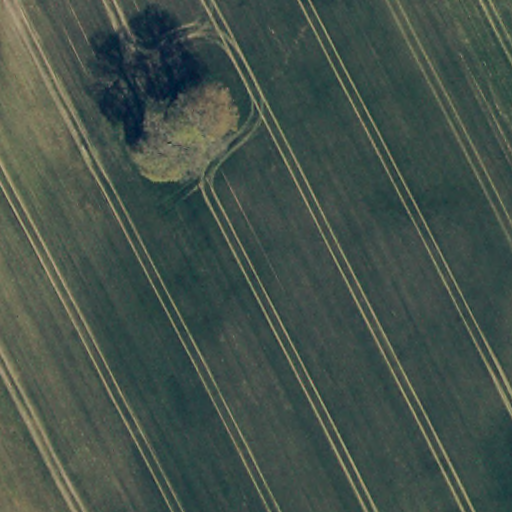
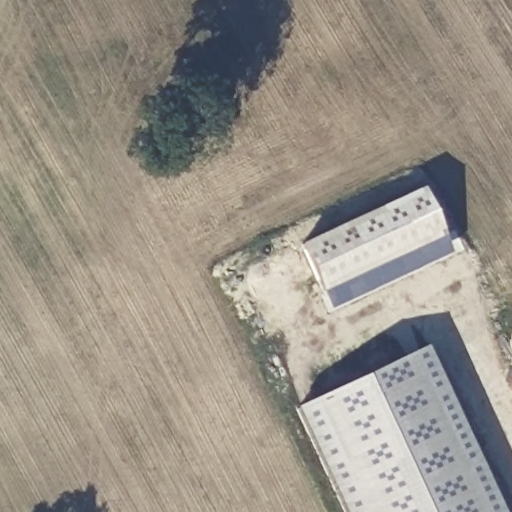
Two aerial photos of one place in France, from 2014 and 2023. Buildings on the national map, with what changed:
new [(291,409),(422,347),(501,512),(341,512),(291,409)]

